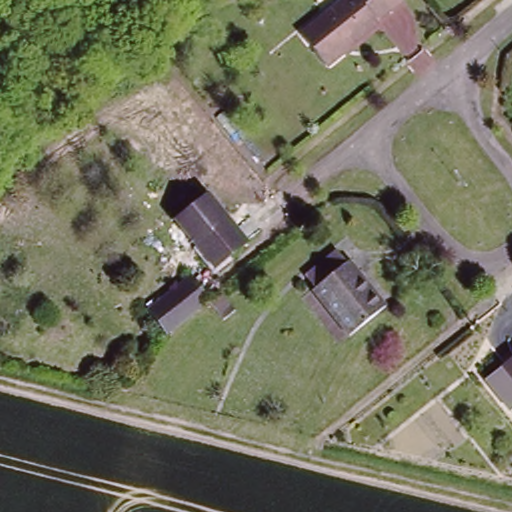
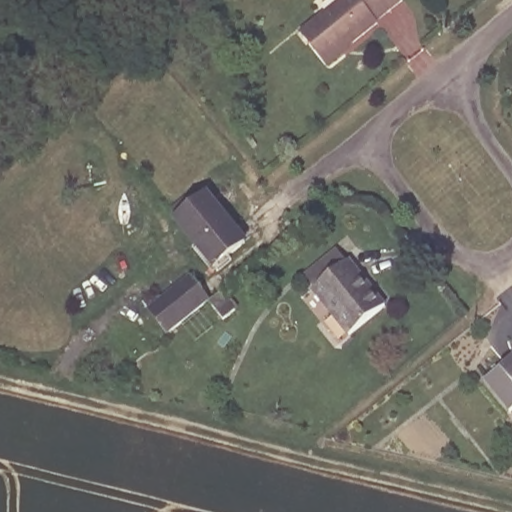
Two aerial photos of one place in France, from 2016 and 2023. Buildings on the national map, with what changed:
unchanged [(401,0),(378,19),(381,22),(328,62),(304,32),(345,0),(401,0)]
unchanged [(206,192),(246,239),(212,264),(174,217),(206,192)]
unchanged [(304,274),(334,251),(343,261),(346,258),(381,305),(344,331),(309,287),(313,284),(304,274)]
unchanged [(187,274),(207,299),(165,331),(146,308),(187,274)]
unchanged [(512,407),(488,378),(512,358),(512,407)]

